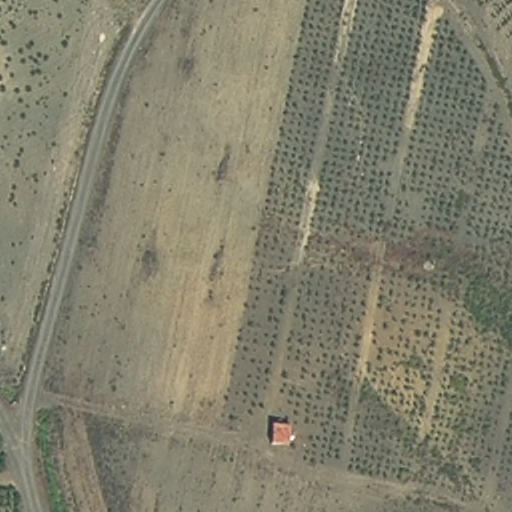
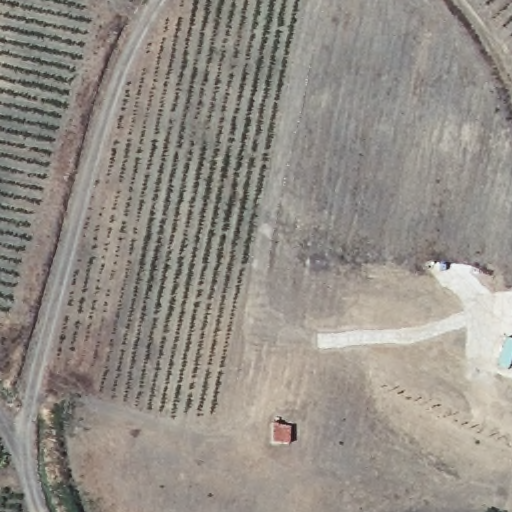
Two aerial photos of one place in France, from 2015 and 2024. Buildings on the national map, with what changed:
unchanged [(292,422),(292,442),(273,440),(273,420),(292,422)]

